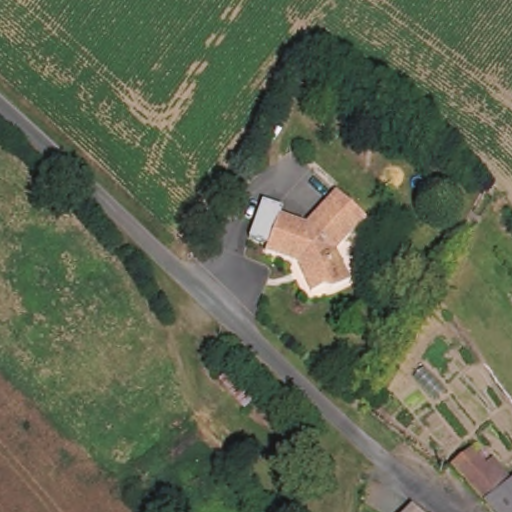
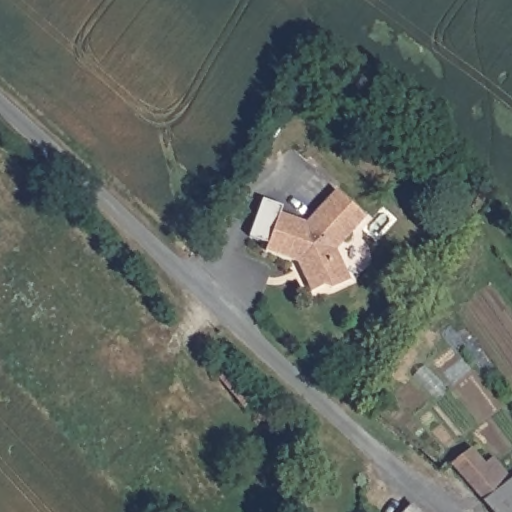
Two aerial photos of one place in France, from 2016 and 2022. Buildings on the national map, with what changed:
unchanged [(338,195),(368,224),(343,249),(336,252),(350,286),(331,293),(326,290),(313,295),(299,263),(267,254),(269,249),(250,242),(263,204),(283,211),(280,218),(307,227),(338,195)]
unchanged [(240,370),(250,381),(241,389),(231,378),(240,370)]
unchanged [(471,452),(475,456),(484,466),(491,460),(499,468),(512,481),(512,512),(490,512),(451,470),(471,452)]
unchanged [(411,507),(416,512),(407,512),(407,511),(411,507)]

